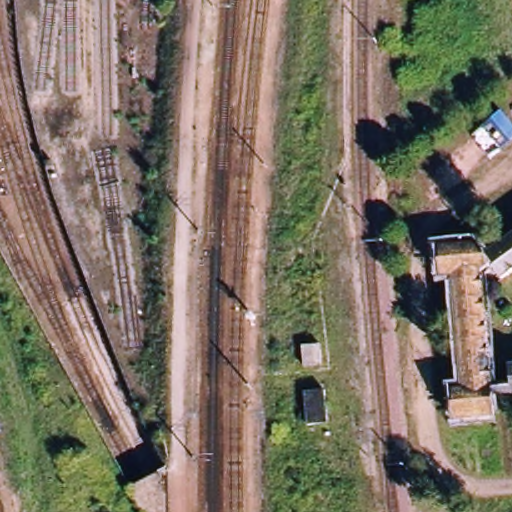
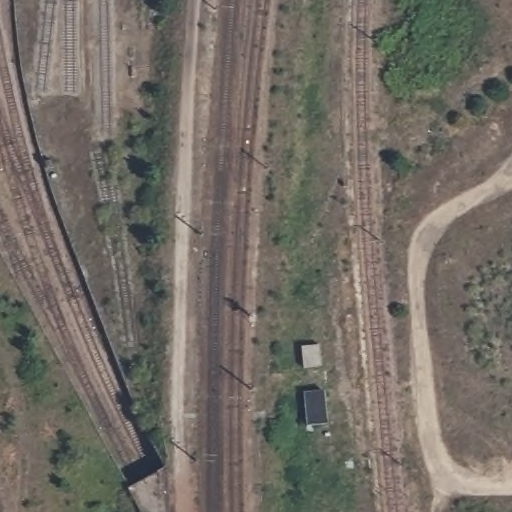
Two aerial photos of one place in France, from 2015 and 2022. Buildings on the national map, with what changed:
demolished [(497,419),(455,425),(450,392),(458,391),(445,281),(438,282),(434,246),(470,242),(473,247),(512,217),(512,265),(497,276),(491,267),(479,274),(493,386),(495,403),(497,419)]
unchanged [(321,376),(303,379),(301,346),(319,344),(321,376)]
demolished [(512,368),(512,379),(510,368),(512,368)]
demolished [(512,401),(495,403),(493,386),(512,383),(512,401)]
unchanged [(325,422),(303,425),(302,396),(324,393),(325,422)]

